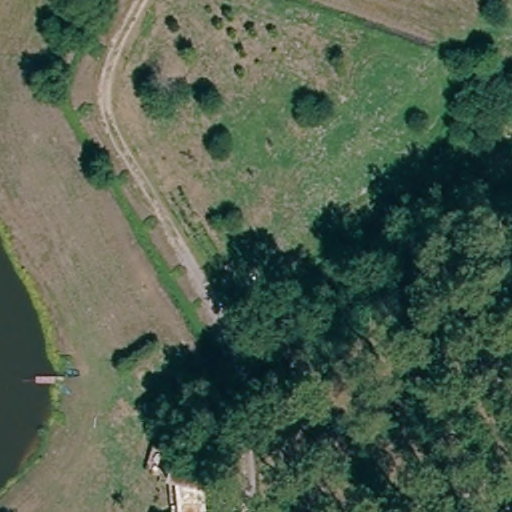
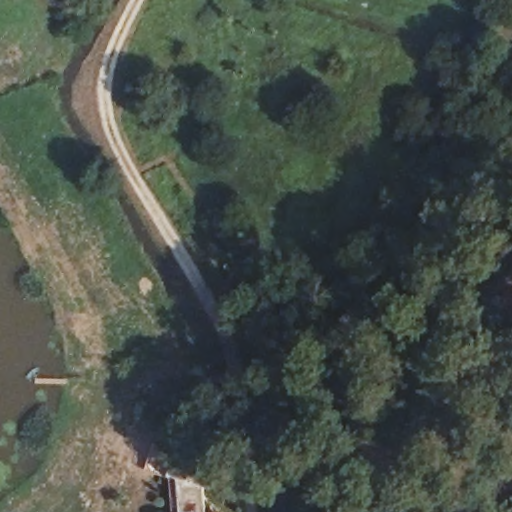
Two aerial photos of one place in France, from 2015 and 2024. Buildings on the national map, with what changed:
unchanged [(177,474),(167,471),(174,445),(218,456),(211,483),(203,481),(207,512),(181,512),(177,474)]

